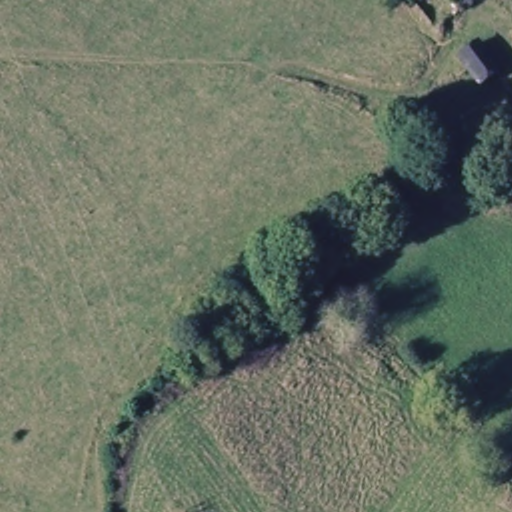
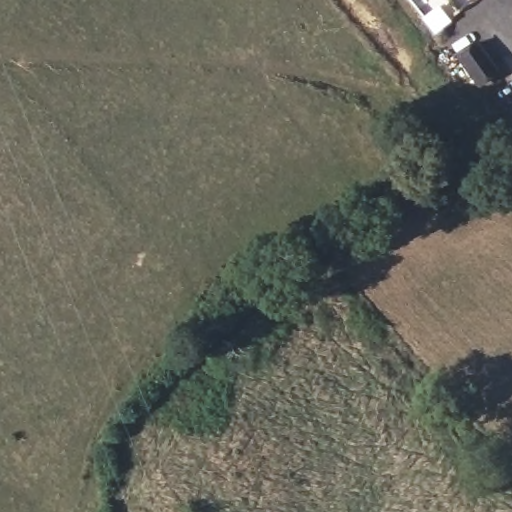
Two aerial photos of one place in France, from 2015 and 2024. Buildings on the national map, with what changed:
unchanged [(488,43),(507,69),(490,81),(475,59),(472,55),(488,43)]

